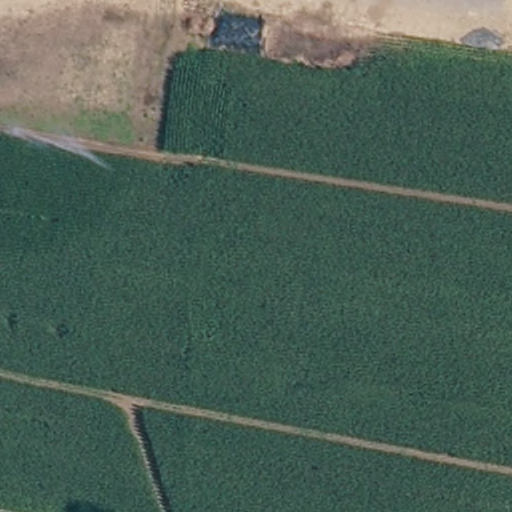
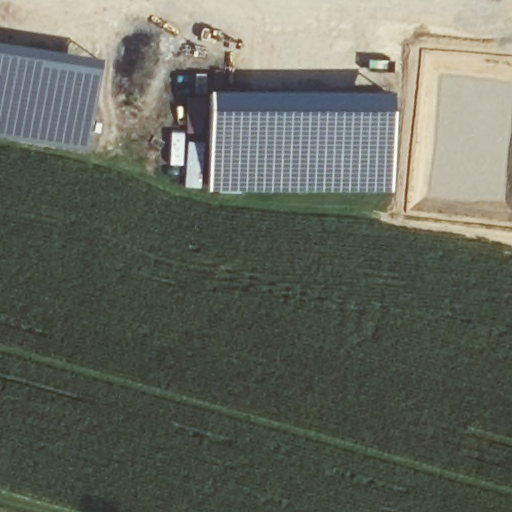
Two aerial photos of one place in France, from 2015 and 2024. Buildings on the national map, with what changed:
new [(86,152),(0,139),(0,44),(101,58),(86,152)]
new [(391,92),(392,192),(211,192),(210,93),(391,92)]

